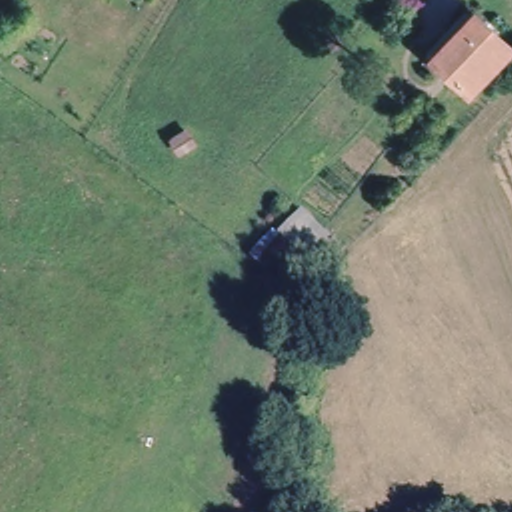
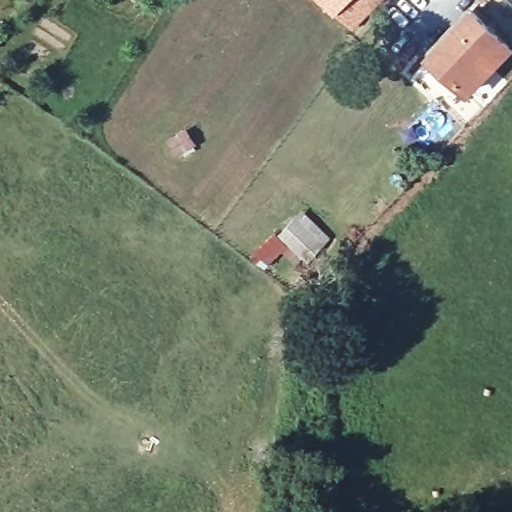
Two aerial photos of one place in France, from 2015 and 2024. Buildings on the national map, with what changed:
new [(335,15),(320,0),(350,0),(335,15)]
new [(350,0),(383,0),(353,30),(335,15),(350,0)]
unchanged [(467,87),(431,54),(472,11),(506,44),(467,87)]
unchanged [(177,151),(169,138),(186,129),(194,142),(177,151)]
unchanged [(289,245),(266,265),(251,253),(274,225),(282,229),(301,205),(334,230),(311,260),(289,245)]

